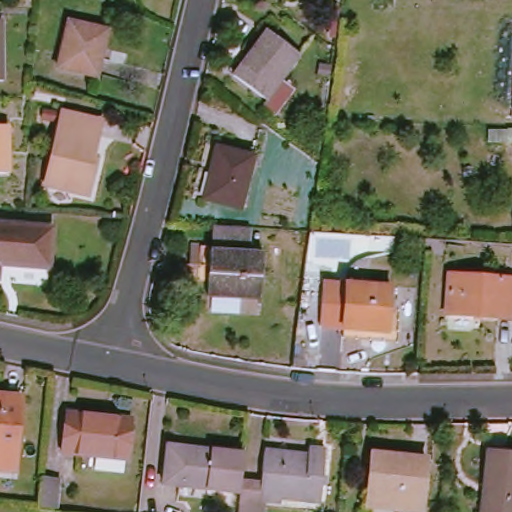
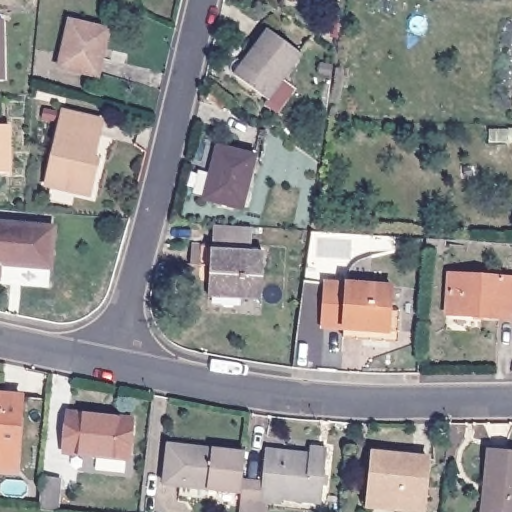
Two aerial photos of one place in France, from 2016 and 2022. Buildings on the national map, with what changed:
unchanged [(292,0),(292,1),(291,0),(292,0)]
unchanged [(0,21),(4,21),(5,81),(0,80),(0,21)]
unchanged [(64,73),(75,27),(110,34),(103,63),(107,64),(102,81),(64,73)]
unchanged [(242,84),(273,40),(305,64),(272,108),(242,84)]
unchanged [(47,185),(64,111),(98,120),(95,136),(100,137),(93,167),(96,168),(90,194),(47,185)]
unchanged [(9,173),(0,172),(0,125),(10,125),(9,173)]
unchanged [(207,202),(203,200),(205,198),(208,199),(215,173),(211,172),(217,145),(257,156),(242,210),(207,202)]
unchanged [(0,222),(55,226),(53,265),(3,263),(2,275),(0,275),(0,222)]
unchanged [(258,232),(257,258),(218,257),(220,230),(258,232)]
unchanged [(269,259),(267,304),(265,304),(265,300),(252,299),(251,303),(213,301),(215,274),(195,272),(197,252),(217,252),(216,257),(218,257),(257,258),(269,259)]
unchanged [(346,333),(325,331),(325,326),(330,282),(352,283),(353,262),(363,256),(371,257),(371,284),(396,287),(394,331),(393,336),(346,333)]
unchanged [(447,313),(450,274),(512,279),(512,318),(447,313)]
unchanged [(0,399),(27,402),(19,475),(0,473),(0,399)]
unchanged [(65,450),(68,412),(100,414),(100,421),(133,424),(129,458),(65,450)]
unchanged [(170,487),(173,448),(233,456),(228,494),(170,487)]
unchanged [(247,484),(268,487),(272,454),(315,458),(316,451),(332,453),(327,506),(288,502),(288,506),(266,503),(266,512),(244,512),(247,484)]
unchanged [(375,505),(380,475),(376,475),(379,454),(430,459),(426,511),(375,505)]
unchanged [(492,491),(488,491),(490,460),(512,462),(512,512),(491,512),(492,491)]
unchanged [(38,509),(42,477),(61,479),(58,511),(38,509)]

